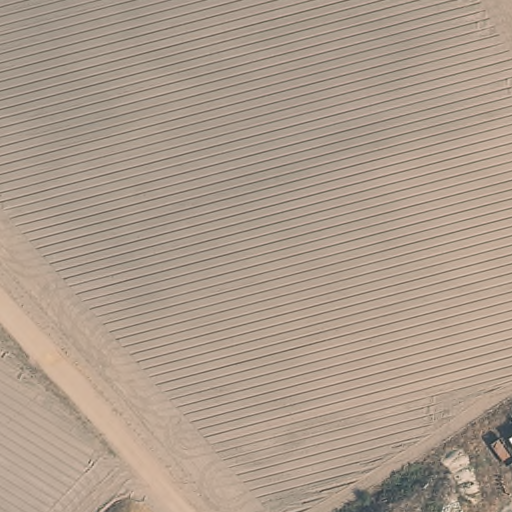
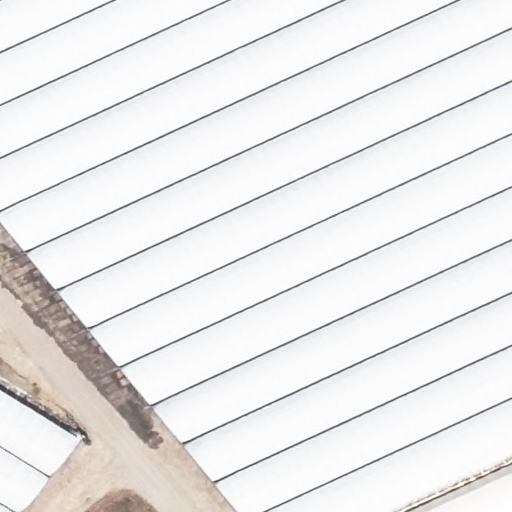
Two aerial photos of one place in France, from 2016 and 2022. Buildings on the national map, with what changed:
new [(379,512),(233,512),(0,227),(0,0),(512,0),(512,451),(379,512)]
new [(21,512),(0,512),(0,391),(80,440),(21,512)]
new [(512,474),(512,512),(428,512),(512,474)]

